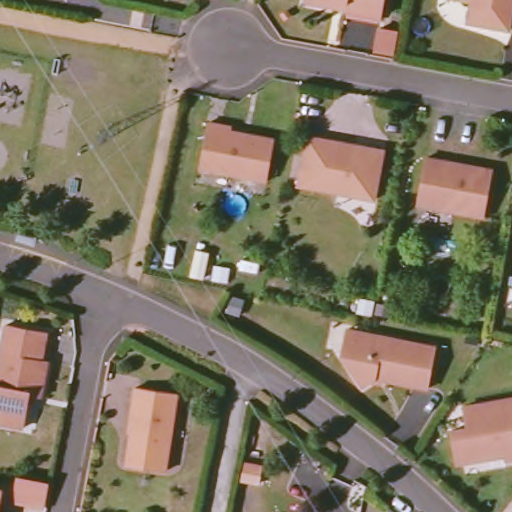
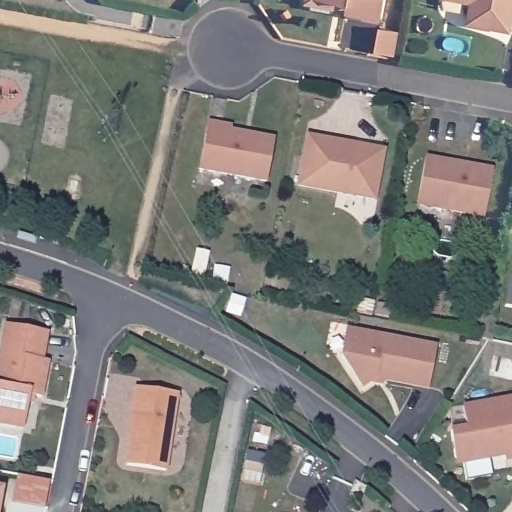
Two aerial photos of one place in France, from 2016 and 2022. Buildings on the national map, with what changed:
unchanged [(309,0),(388,0),(386,14),(346,8),(309,2),(309,0)]
unchanged [(478,24),(482,4),(472,2),(460,0),(512,0),(512,32),(478,24)]
unchanged [(231,124),(229,130),(276,139),(268,181),(201,167),(211,120),(231,124)]
unchanged [(303,183),(312,133),(359,142),(386,147),(384,154),(376,198),(303,183)]
unchanged [(424,208),(431,161),(454,165),(497,173),(496,179),(488,219),(424,208)]
unchanged [(206,249),(201,276),(188,273),(193,247),(206,249)]
unchanged [(361,294),(378,298),(374,315),(357,312),(361,294)]
unchanged [(40,358),(46,360),(39,397),(29,395),(23,426),(0,421),(0,364),(9,322),(46,329),(40,358)]
unchanged [(436,344),(429,385),(375,374),(364,381),(344,355),(354,347),(358,329),(436,344)]
unchanged [(183,394),(177,432),(179,432),(173,469),(128,461),(134,424),(131,423),(138,386),(183,394)]
unchanged [(506,462),(504,454),(494,455),(491,459),(466,464),(463,464),(459,462),(456,458),(453,431),(468,429),(466,412),(466,409),(467,408),(512,400),(512,461),(506,462)]
unchanged [(0,503),(0,488),(3,489),(0,503)]

